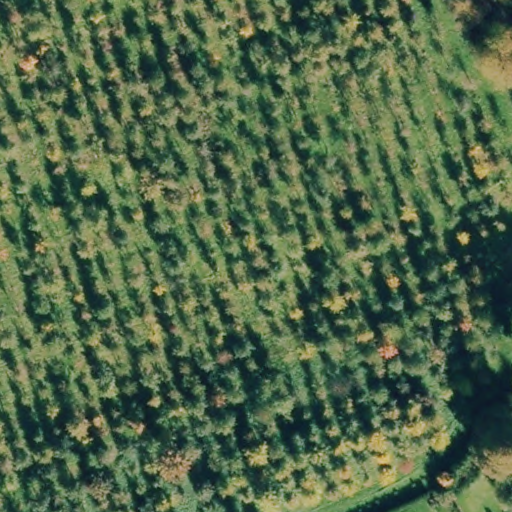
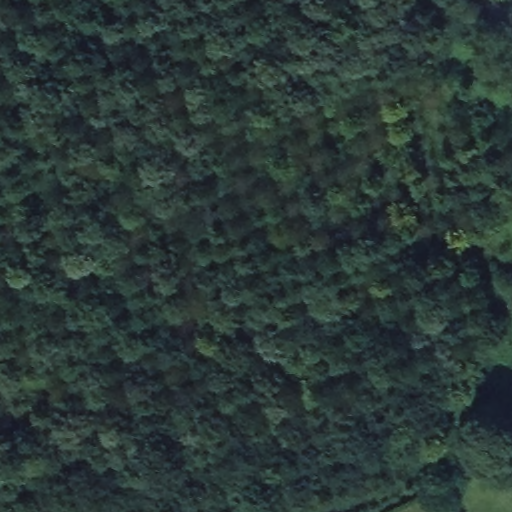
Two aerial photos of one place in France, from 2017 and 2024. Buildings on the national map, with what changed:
unchanged [(490,447),(497,442),(502,437),(512,431),(512,448),(511,449),(505,453),(497,458),(490,447)]

